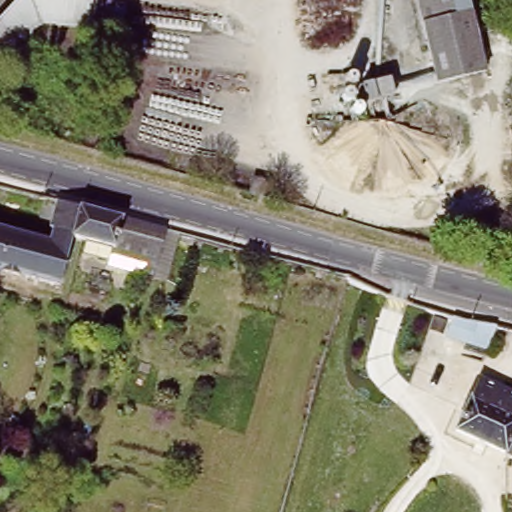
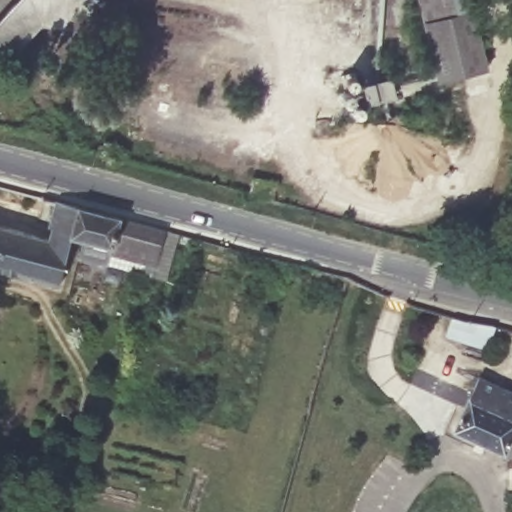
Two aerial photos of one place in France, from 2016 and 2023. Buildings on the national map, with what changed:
unchanged [(39,26),(4,63),(0,59),(0,25),(24,0),(72,0),(94,2),(93,31),(39,26)]
unchanged [(485,54),(490,73),(435,87),(413,0),(471,0),(485,54)]
unchanged [(361,85),(346,87),(343,74),(358,71),(361,85)]
unchanged [(394,97),(368,101),(364,84),(389,79),(394,97)]
unchanged [(366,116),(352,118),(349,102),(364,100),(366,116)]
unchanged [(154,269),(153,271),(110,261),(111,255),(81,245),(72,244),(73,239),(53,234),(49,231),(56,205),(76,210),(116,222),(163,234),(154,269)]
unchanged [(72,244),(61,288),(0,274),(0,232),(49,245),(53,234),(73,239),(72,244)]
unchanged [(485,357),(465,350),(466,345),(446,338),(454,315),(474,321),(496,327),(485,357)]
unchanged [(453,433),(476,378),(512,394),(512,458),(453,433)]

